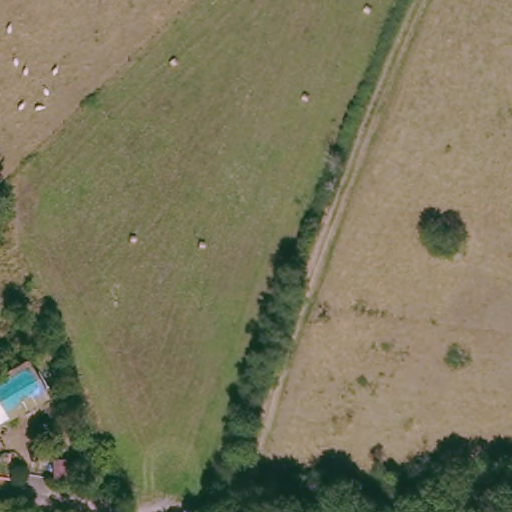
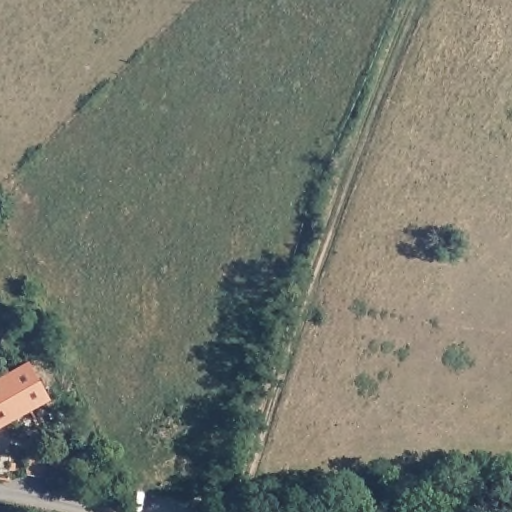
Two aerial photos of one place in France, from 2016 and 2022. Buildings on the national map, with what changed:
unchanged [(52,392),(0,422),(0,376),(33,357),(52,392)]
unchanged [(10,458),(8,480),(0,479),(0,462),(10,458)]

